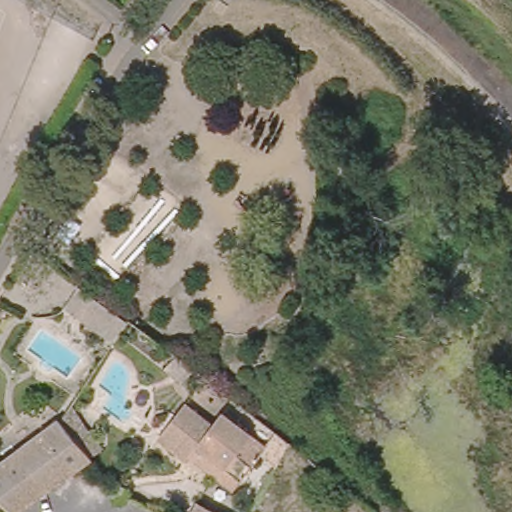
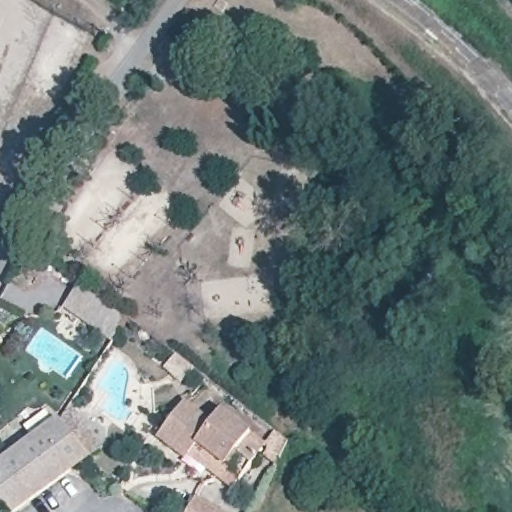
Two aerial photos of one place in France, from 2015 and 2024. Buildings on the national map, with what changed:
unchanged [(113,346),(63,312),(77,292),(126,326),(113,346)]
unchanged [(176,357),(193,370),(181,385),(164,370),(176,357)]
unchanged [(166,435),(196,395),(219,411),(221,407),(249,427),(246,432),(259,442),(231,481),(215,469),(191,452),(166,435)]
unchanged [(0,460),(60,416),(61,417),(89,453),(69,467),(8,511),(0,501),(0,460)]
unchanged [(218,512),(183,512),(191,498),(218,512)]

